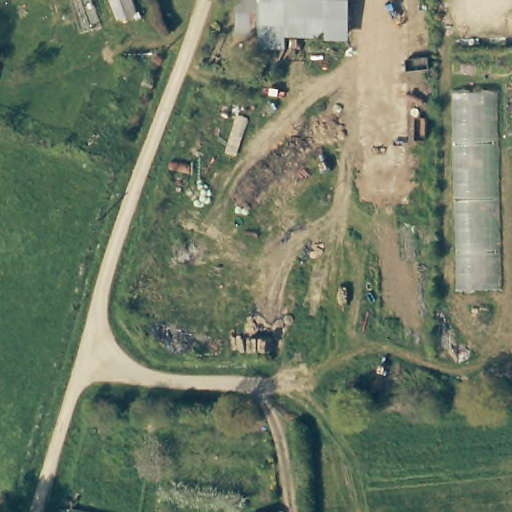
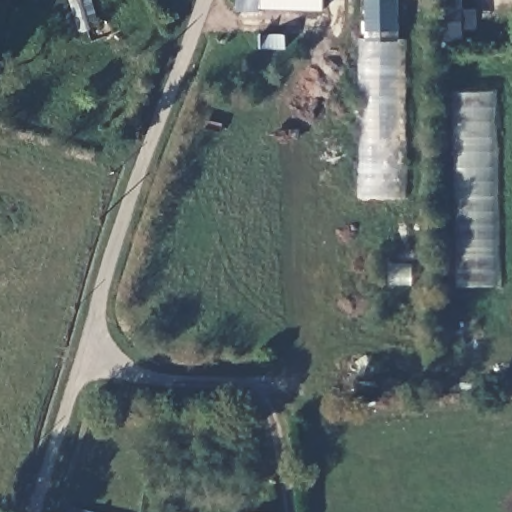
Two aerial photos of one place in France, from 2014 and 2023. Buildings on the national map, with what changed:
new [(260,14),(237,12),(238,0),(261,0),(260,14)]
new [(464,8),(476,9),(477,29),(465,30),(464,40),(442,41),(441,0),(463,0),(464,8)]
new [(406,198),(360,200),(357,38),(405,39),(406,198)]
unchanged [(504,288),(460,290),(453,92),(499,91),(504,288)]
unchanged [(84,512),(70,512),(71,509),(84,512)]

